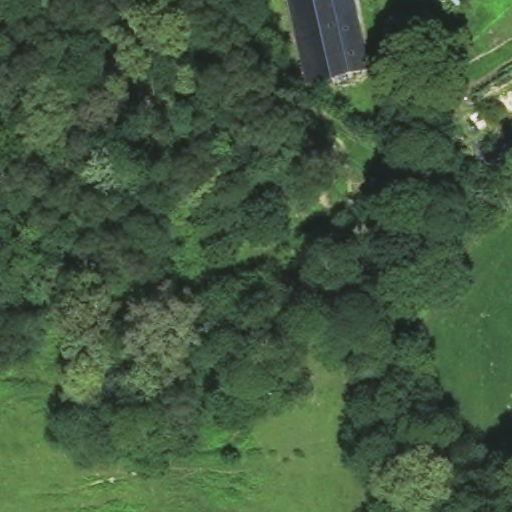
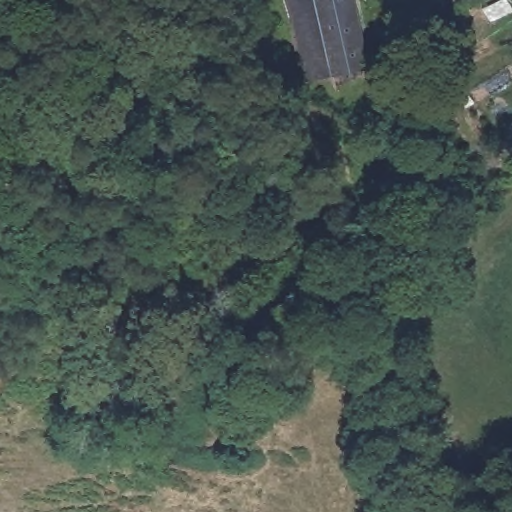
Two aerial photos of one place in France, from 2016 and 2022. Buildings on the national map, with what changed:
unchanged [(363,68),(325,79),(303,0),(349,0),(363,68)]

